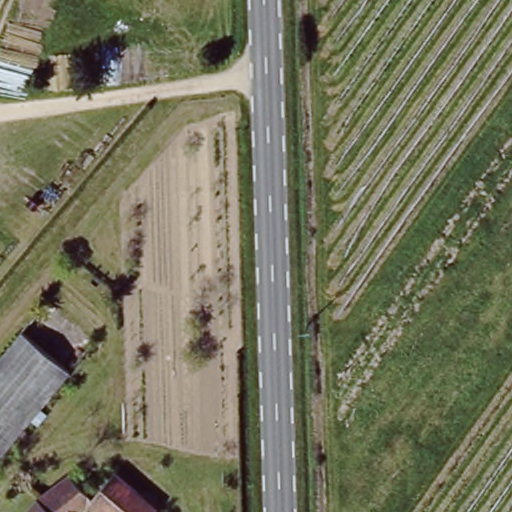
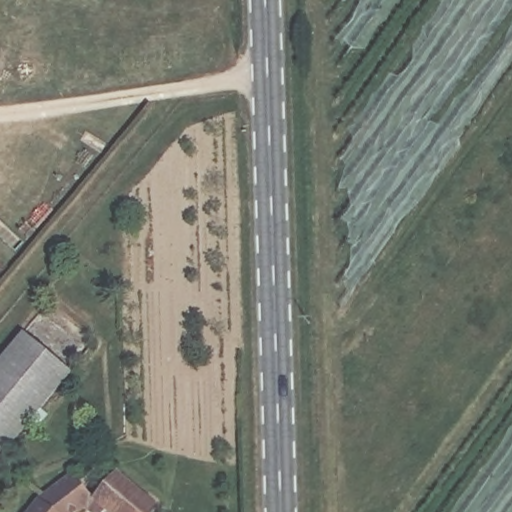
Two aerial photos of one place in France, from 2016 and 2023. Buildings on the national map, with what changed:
unchanged [(19,329),(68,368),(0,454),(0,354),(19,329)]
unchanged [(44,497),(71,476),(94,494),(113,469),(116,472),(157,505),(151,512),(112,512),(105,506),(101,512),(97,512),(87,503),(74,512),(27,512),(41,495),(44,497)]

